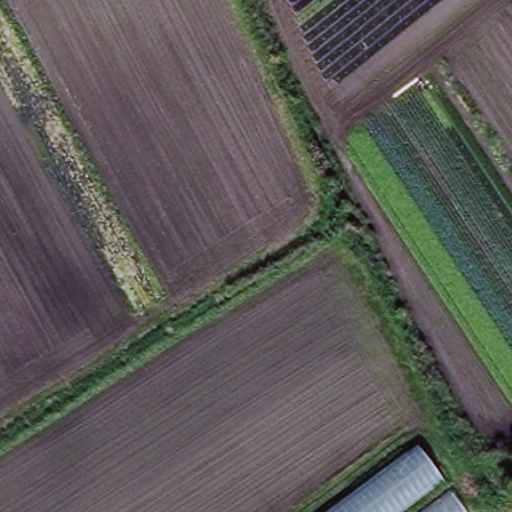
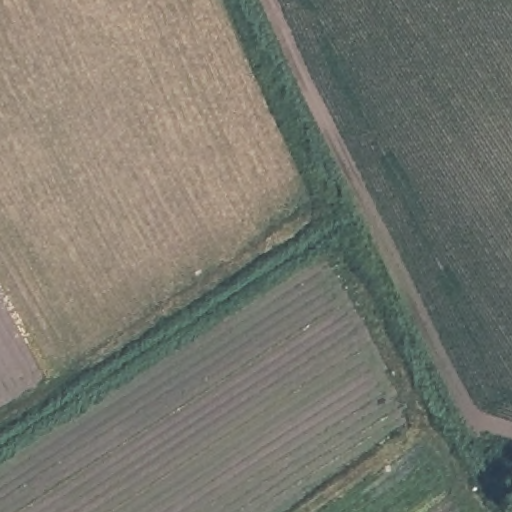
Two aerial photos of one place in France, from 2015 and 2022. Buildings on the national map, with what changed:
demolished [(333,512),(419,448),(462,512),(333,512)]

